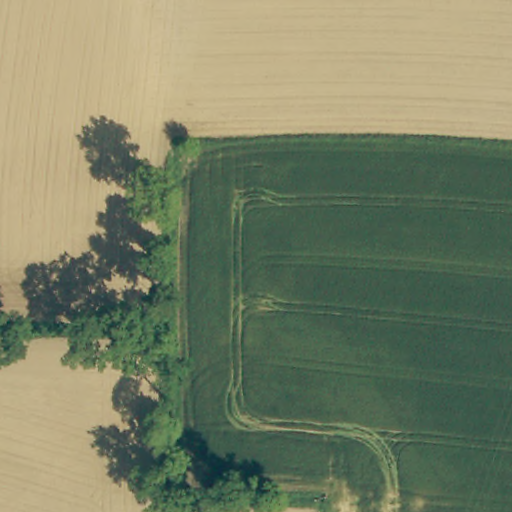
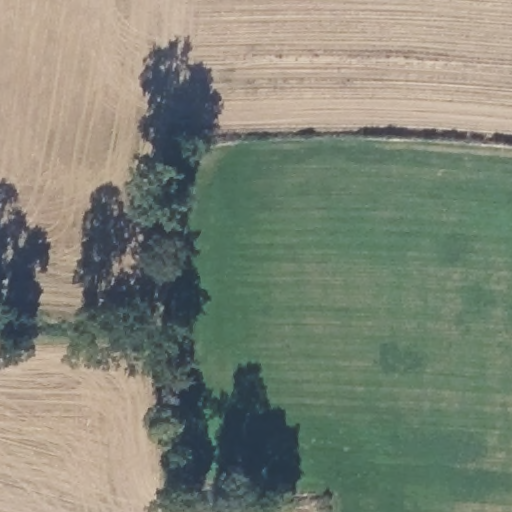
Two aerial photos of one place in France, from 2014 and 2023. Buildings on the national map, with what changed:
[]

